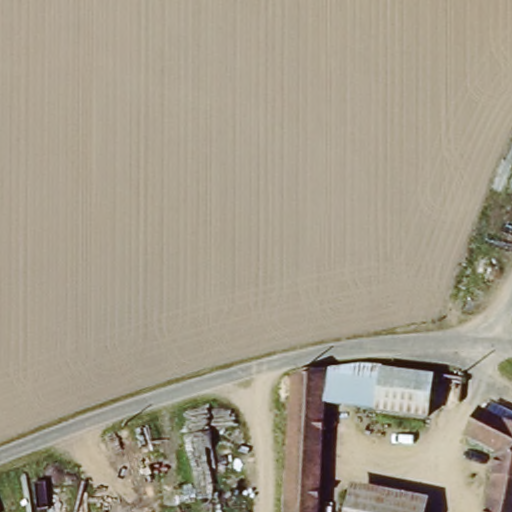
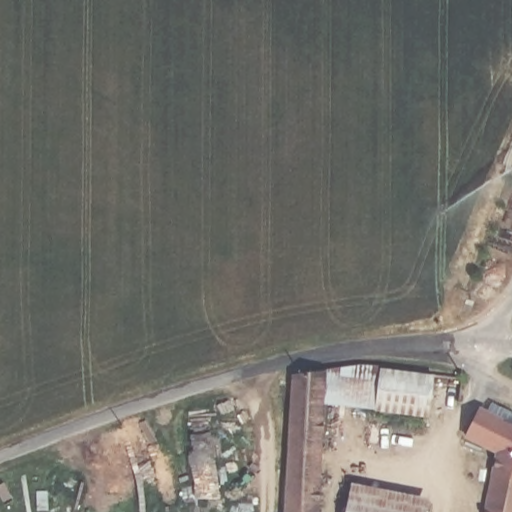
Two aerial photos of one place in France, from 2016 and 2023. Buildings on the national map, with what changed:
unchanged [(360,365),(381,367),(384,367),(377,410),(326,405),(327,385),(319,512),(286,512),(294,375),(328,370),(360,365)]
unchanged [(430,375),(423,417),(377,410),(384,367),(430,375)]
unchanged [(469,435),(481,410),(512,424),(512,512),(485,512),(497,448),(469,435)]
unchanged [(424,512),(348,512),(350,504),(354,484),(426,498),(424,512)]

